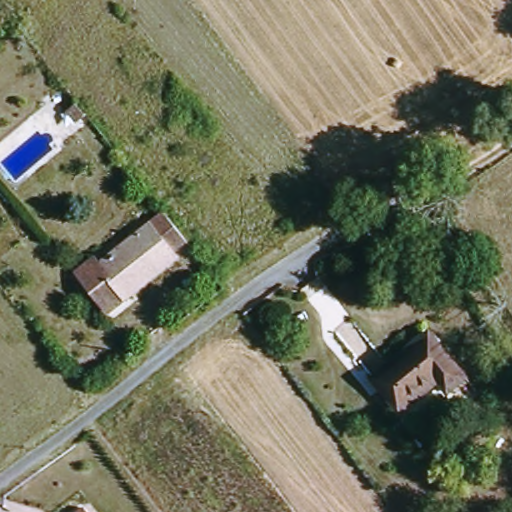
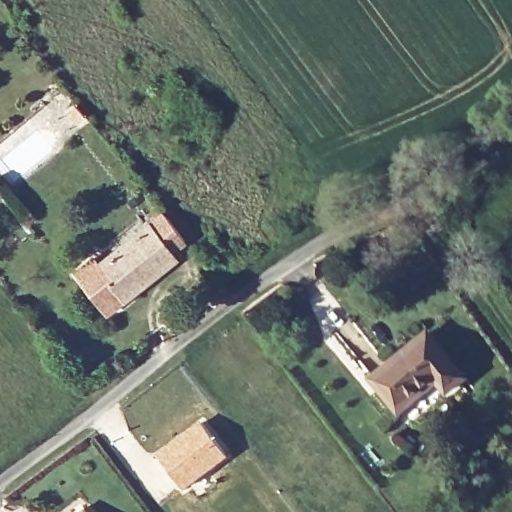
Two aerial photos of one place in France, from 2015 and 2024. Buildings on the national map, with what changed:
unchanged [(74,272),(93,257),(99,260),(163,210),(189,242),(175,253),(179,260),(110,317),(74,272)]
unchanged [(398,411),(370,376),(428,330),(466,378),(448,395),(436,380),(398,411)]
new [(200,419),(229,456),(183,491),(155,455),(200,419)]
unchanged [(75,512),(83,506),(90,512),(75,512)]

